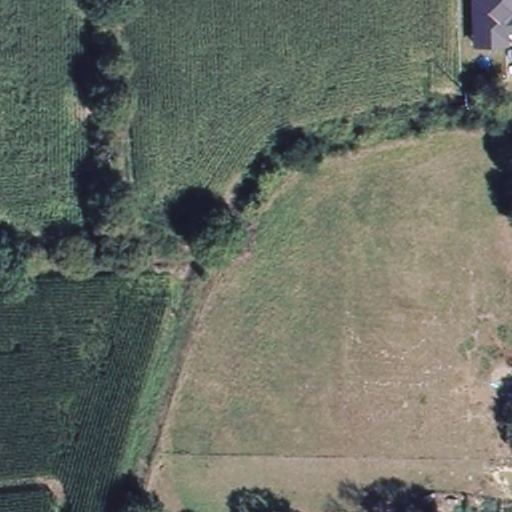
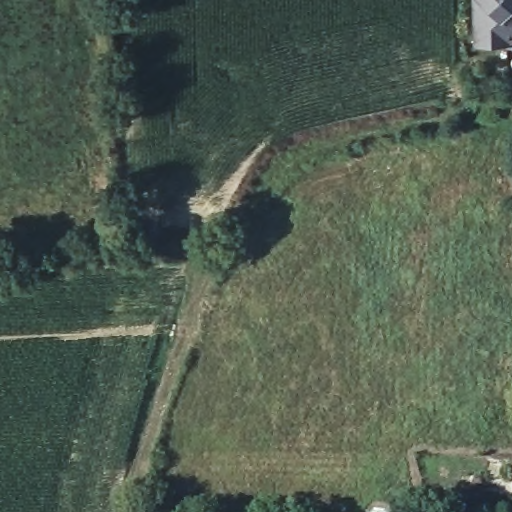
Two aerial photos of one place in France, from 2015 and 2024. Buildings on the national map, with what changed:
unchanged [(476,33),(475,0),(512,0),(512,26),(507,26),(508,41),(476,42),(476,33)]

